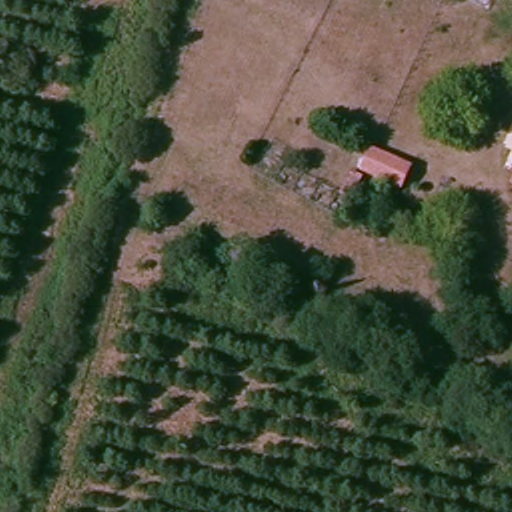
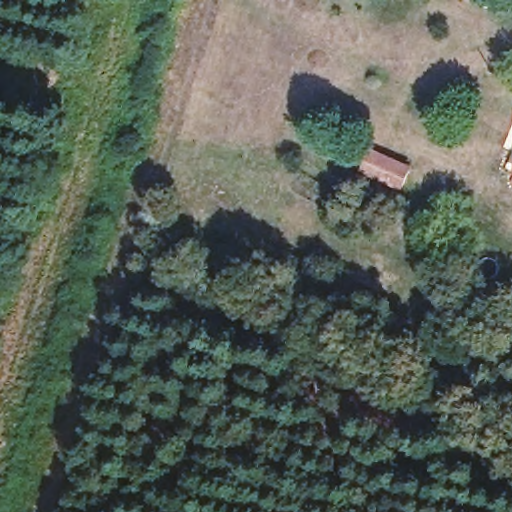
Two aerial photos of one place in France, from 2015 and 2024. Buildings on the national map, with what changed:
unchanged [(416,166),(406,191),(363,174),(373,149),(416,166)]

